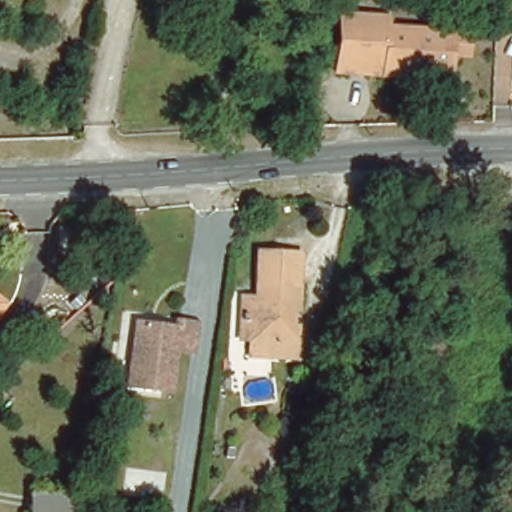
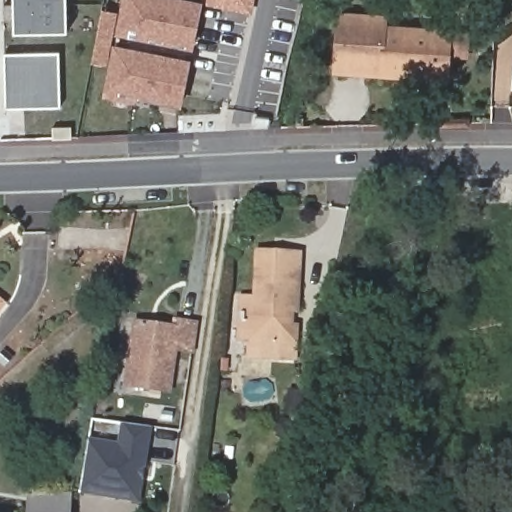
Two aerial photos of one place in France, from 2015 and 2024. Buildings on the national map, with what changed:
new [(67,32),(13,33),(13,19),(3,19),(3,5),(12,5),(12,0),(67,0),(67,32)]
new [(127,0),(171,0),(203,6),(194,49),(120,35),(127,0)]
new [(251,13),(201,4),(202,0),(254,0),(251,13)]
unchanged [(454,57),(439,55),(438,74),(328,67),(332,11),(378,14),(378,24),(441,28),(456,29),(454,57)]
demolished [(512,29),(512,54),(511,54),(512,29)]
new [(116,49),(191,64),(182,107),(136,98),(135,103),(107,97),(116,49)]
new [(63,107),(9,109),(7,68),(6,54),(24,54),(61,52),(63,107)]
unchanged [(303,254),(300,313),(295,313),(295,326),(300,326),(298,358),(255,356),(257,321),(249,320),(250,297),(260,297),(262,251),(303,254)]
unchanged [(4,305),(0,309),(0,302),(4,305)]
unchanged [(137,327),(170,332),(171,325),(191,328),(188,355),(172,352),(166,395),(127,389),(120,388),(129,326),(137,327)]
unchanged [(298,390),(294,414),(285,413),(288,389),(298,390)]
new [(145,492),(84,482),(92,429),(122,434),(125,413),(155,417),(145,492)]
unchanged [(73,512),(33,512),(34,491),(74,493),(73,512)]

